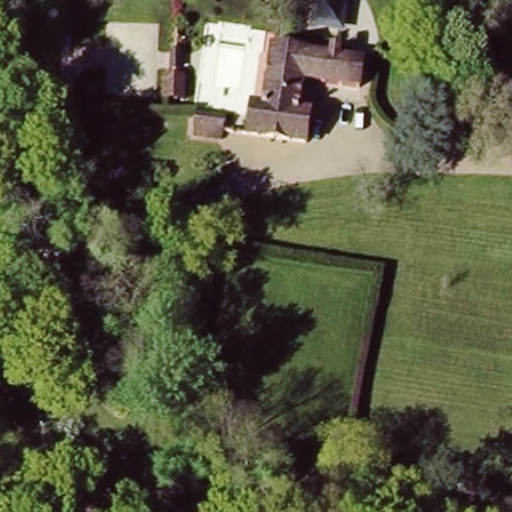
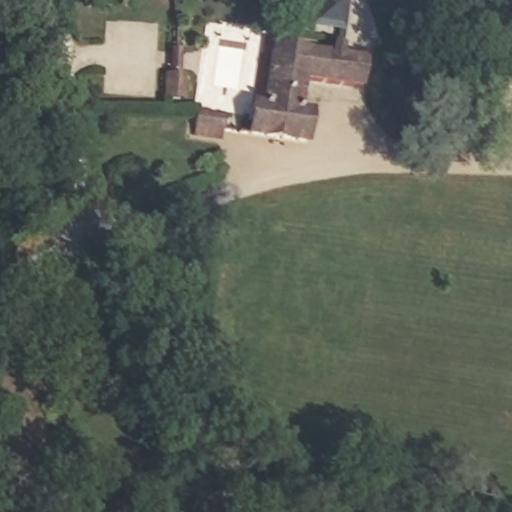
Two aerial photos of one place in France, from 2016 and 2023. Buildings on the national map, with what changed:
unchanged [(257,136),(256,58),(357,48),(362,86),(318,91),(322,131),(257,136)]
unchanged [(197,79),(197,91),(188,91),(172,93),(172,81),(197,79)]
unchanged [(189,116),(227,113),(227,136),(190,135),(189,116)]

